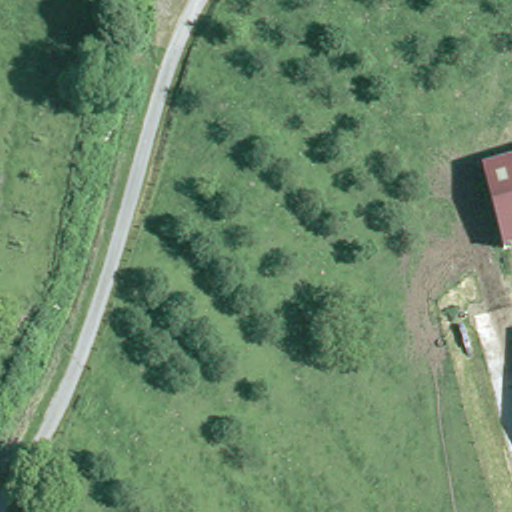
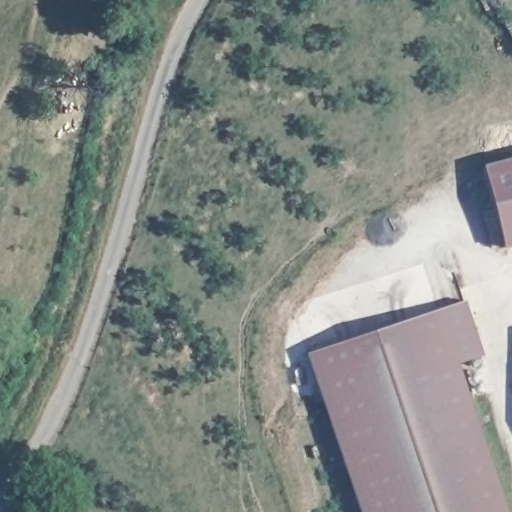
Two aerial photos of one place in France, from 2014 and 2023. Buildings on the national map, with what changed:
unchanged [(502,221),(494,191),(488,164),(512,158),(512,219),(502,221)]
unchanged [(507,244),(502,221),(512,219),(512,243),(507,244)]
new [(483,355),(458,362),(507,512),(361,512),(307,353),(464,300),(483,355)]

